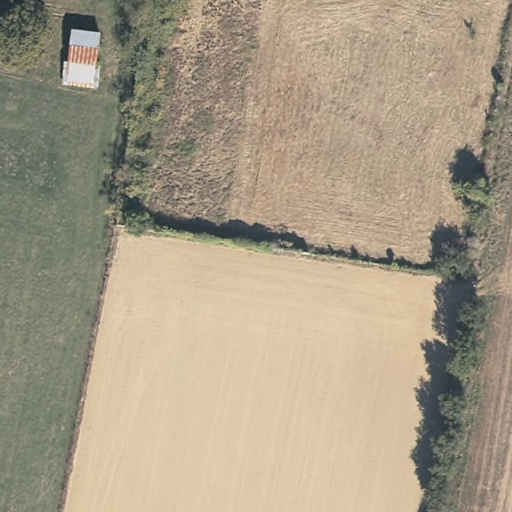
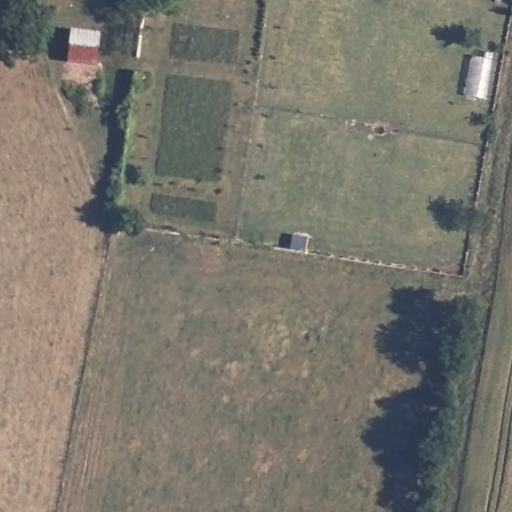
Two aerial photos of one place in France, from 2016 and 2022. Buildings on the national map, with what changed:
unchanged [(71,31),(98,35),(96,49),(94,66),(66,63),(69,44),(71,31)]

